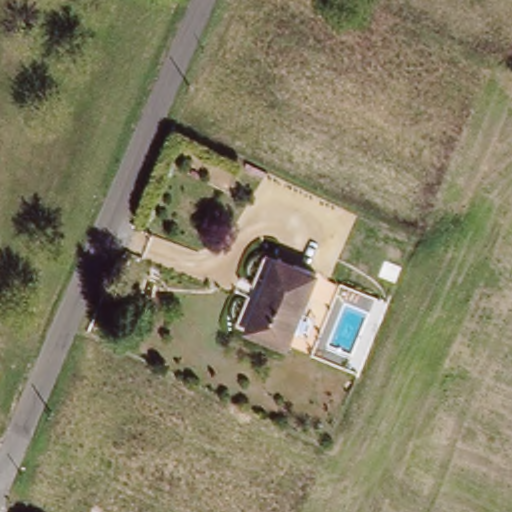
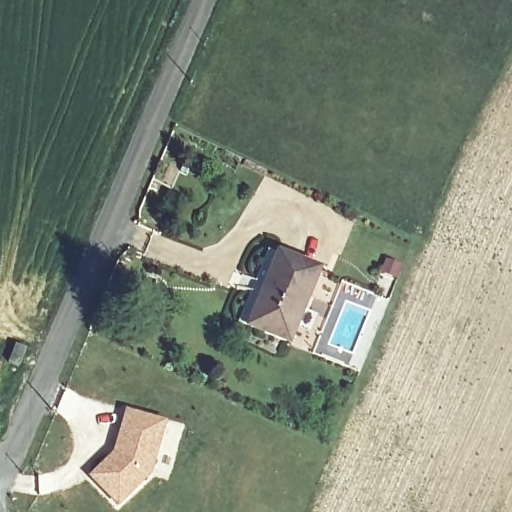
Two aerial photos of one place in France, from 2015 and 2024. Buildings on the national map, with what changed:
unchanged [(319,275),(288,346),(249,328),(281,257),(319,275)]
new [(151,477),(118,507),(88,476),(113,452),(126,410),(168,422),(151,477)]

